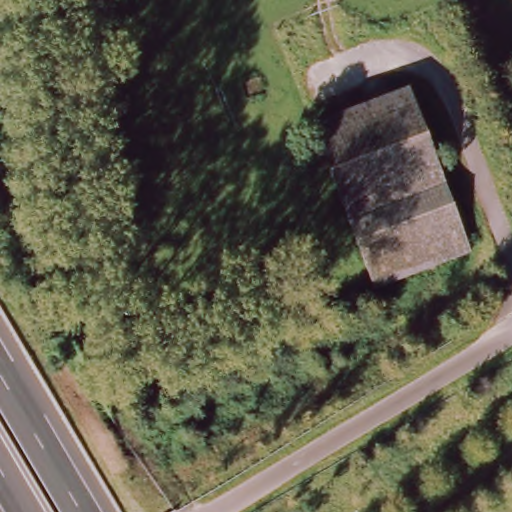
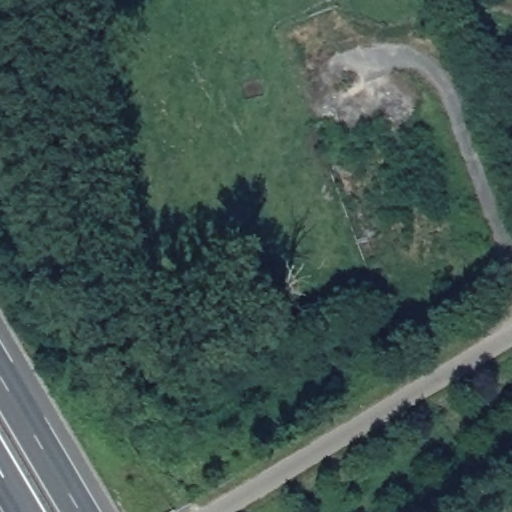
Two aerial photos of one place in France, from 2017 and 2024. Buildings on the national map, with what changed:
demolished [(410,85),(445,182),(470,251),(372,286),(346,217),(312,124),(410,85)]

